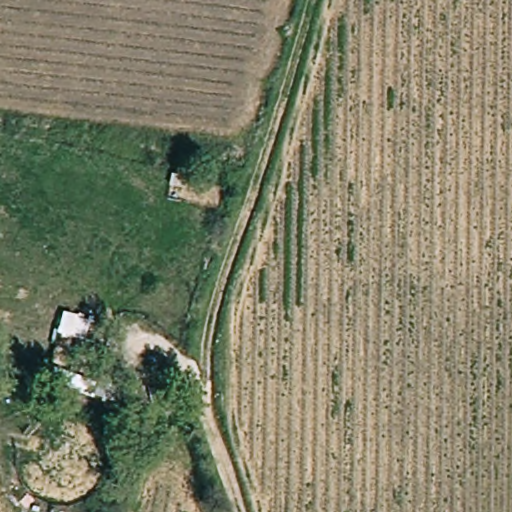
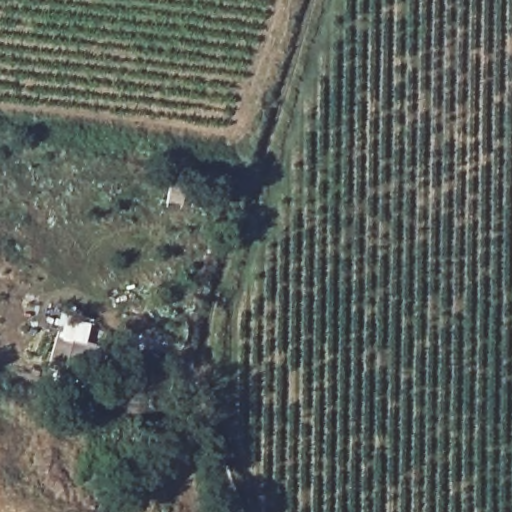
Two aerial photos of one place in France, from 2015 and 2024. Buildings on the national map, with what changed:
unchanged [(110,405),(43,384),(49,362),(119,382),(110,405)]

